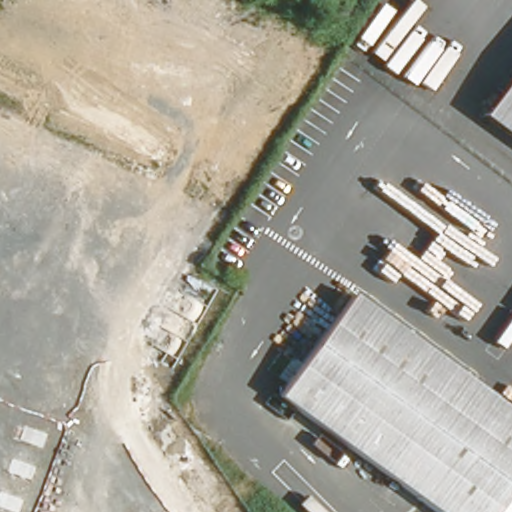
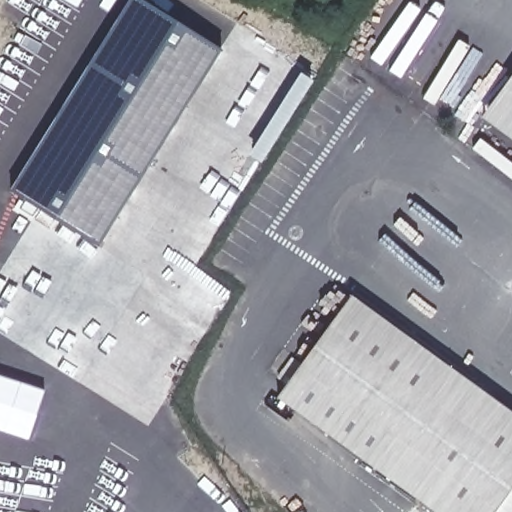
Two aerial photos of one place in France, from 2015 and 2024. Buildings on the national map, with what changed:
new [(110,153),(56,119),(131,0),(142,0),(222,49),(150,164),(116,144),(110,153)]
unchanged [(476,114),(512,64),(512,141),(481,119),(476,114)]
new [(56,119),(110,153),(116,144),(150,164),(99,245),(12,191),(56,119)]
unchanged [(512,417),(512,483),(491,512),(429,512),(273,399),(347,298),(512,417)]
new [(44,390),(27,438),(0,429),(0,376),(44,390)]
new [(512,512),(491,512),(512,483),(512,512)]
unchanged [(212,499),(222,491),(232,504),(239,512),(223,512),(212,499)]

